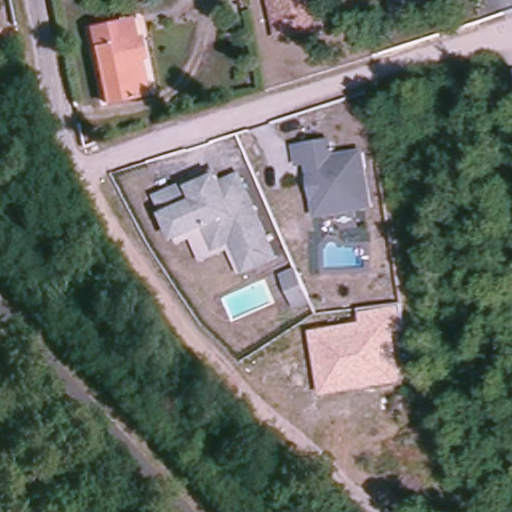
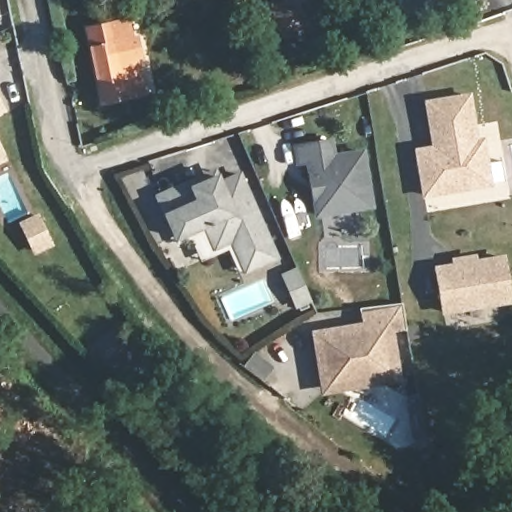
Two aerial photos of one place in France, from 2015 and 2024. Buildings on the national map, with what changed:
unchanged [(274,41),(266,0),(323,0),(329,29),(274,41)]
unchanged [(397,0),(449,0),(399,11),(397,0)]
unchanged [(145,59),(138,61),(144,93),(104,101),(89,30),(118,24),(131,21),(134,41),(140,40),(145,59)]
new [(471,91),(478,136),(485,135),(493,186),(422,197),(414,146),(431,144),(424,98),(471,91)]
new [(0,115),(0,97),(6,111),(0,115)]
unchanged [(308,162),(297,165),(292,145),(333,137),(337,151),(366,148),(375,203),(316,215),(308,162)]
new [(0,162),(0,143),(8,159),(0,162)]
unchanged [(279,260),(239,275),(228,250),(200,260),(190,237),(177,242),(164,214),(155,196),(217,167),(219,173),(242,170),(279,260)]
new [(41,217),(54,245),(40,252),(26,224),(41,217)]
new [(512,295),(512,303),(442,315),(434,264),(449,262),(448,257),(475,253),(476,258),(504,253),(512,295)]
unchanged [(296,309),(281,274),(295,268),(312,302),(296,309)]
unchanged [(406,331),(395,333),(401,382),(322,395),(312,331),(361,322),(359,311),(404,304),(406,331)]

